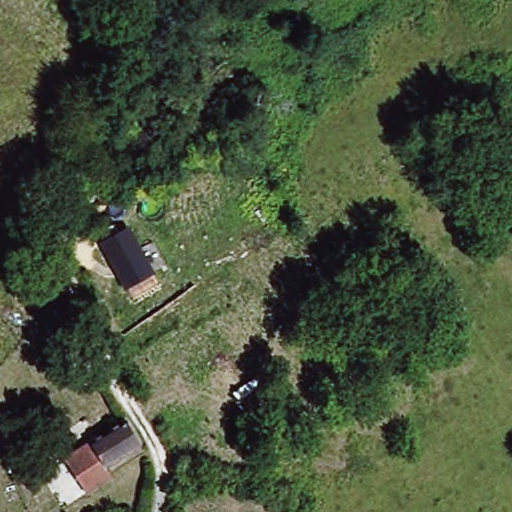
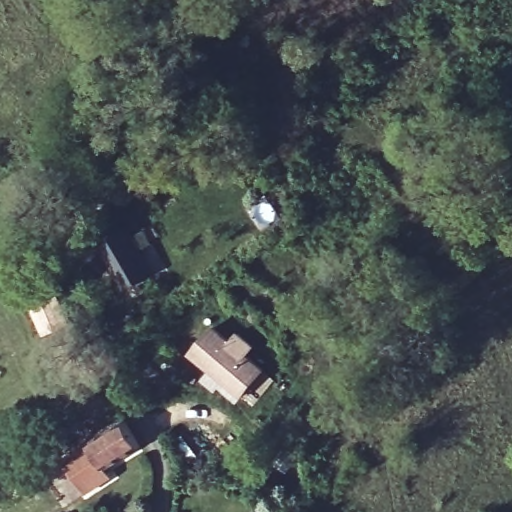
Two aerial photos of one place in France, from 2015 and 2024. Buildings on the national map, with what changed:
unchanged [(154,276),(125,291),(98,242),(128,226),(154,276)]
new [(210,328),(227,343),(235,334),(250,348),(242,356),(259,372),(235,399),(186,354),(210,328)]
unchanged [(60,462),(131,419),(141,448),(100,468),(106,478),(77,494),(60,462)]

